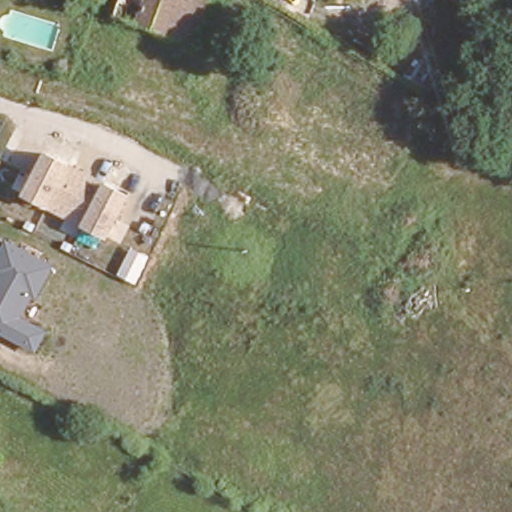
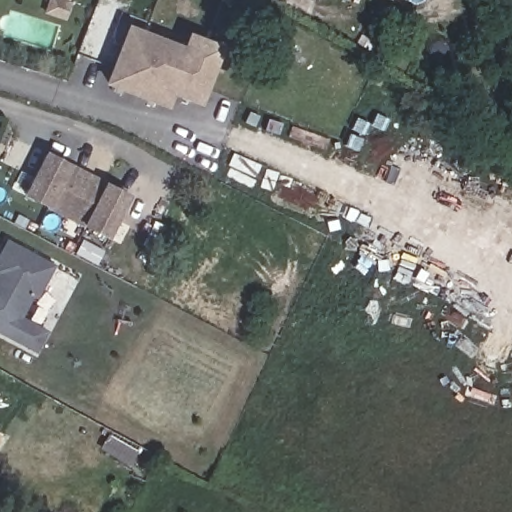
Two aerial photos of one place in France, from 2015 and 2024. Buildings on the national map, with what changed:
demolished [(100,15),(102,0),(205,0),(191,41),(100,15)]
new [(183,46),(189,31),(225,46),(201,106),(173,95),(167,109),(105,85),(128,25),(183,46)]
unchanged [(105,184),(131,195),(109,239),(81,225),(49,209),(23,195),(46,150),(73,165),(105,184)]
unchanged [(32,296),(21,317),(47,330),(36,352),(0,334),(0,250),(6,239),(55,265),(37,298),(32,296)]

